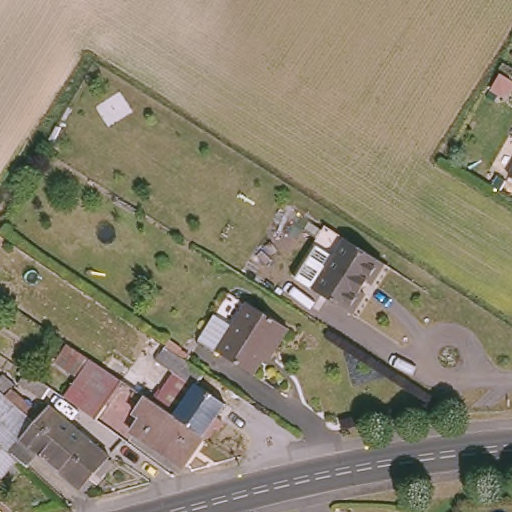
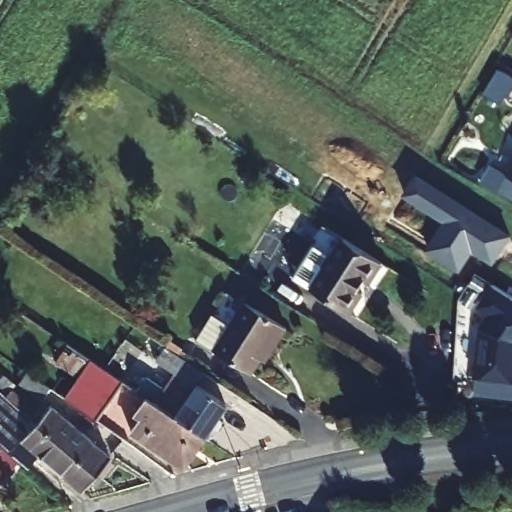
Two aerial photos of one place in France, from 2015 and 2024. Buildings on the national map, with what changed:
demolished [(92,106),(122,90),(135,116),(107,133),(92,106)]
unchanged [(512,164),(512,178),(506,174),(512,164)]
new [(402,196),(418,174),(512,233),(512,238),(494,265),(473,253),(460,272),(427,250),(444,223),(402,196)]
unchanged [(340,226),(360,239),(398,264),(385,284),(381,282),(376,291),(380,294),(366,314),(328,290),(307,277),(340,226)]
new [(490,315),(480,308),(494,285),(512,296),(512,383),(475,379),(481,330),(490,315)]
unchanged [(277,347),(272,344),(255,371),(220,348),(220,347),(217,351),(200,339),(220,310),(237,323),(251,300),(291,326),(277,347)]
unchanged [(83,428),(54,408),(67,388),(44,372),(56,354),(80,369),(109,390),(83,428)]
unchanged [(203,436),(195,448),(192,446),(133,407),(110,391),(120,378),(172,413),(183,397),(145,370),(154,357),(176,372),(180,374),(193,383),(185,394),(212,414),(205,427),(208,429),(203,436)]
unchanged [(55,397),(46,409),(23,392),(30,381),(55,397)]
unchanged [(22,468),(0,448),(0,398),(9,406),(105,489),(101,494),(95,488),(83,500),(42,464),(31,476),(22,468)]
unchanged [(15,399),(45,424),(53,416),(113,466),(105,476),(111,482),(105,489),(9,406),(15,399)]
unchanged [(192,446),(171,476),(120,441),(127,428),(121,424),(133,407),(192,446)]
unchanged [(22,468),(0,491),(0,448),(22,468)]

